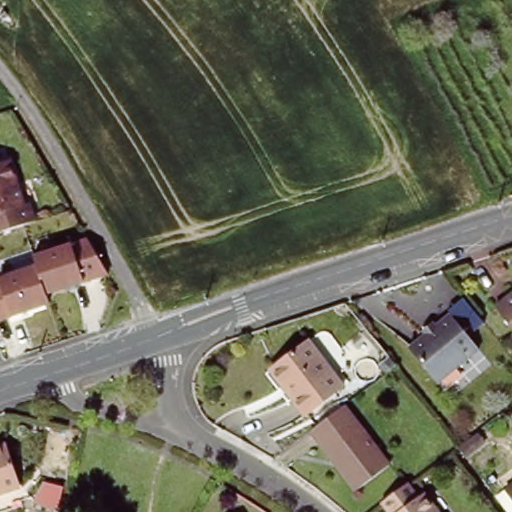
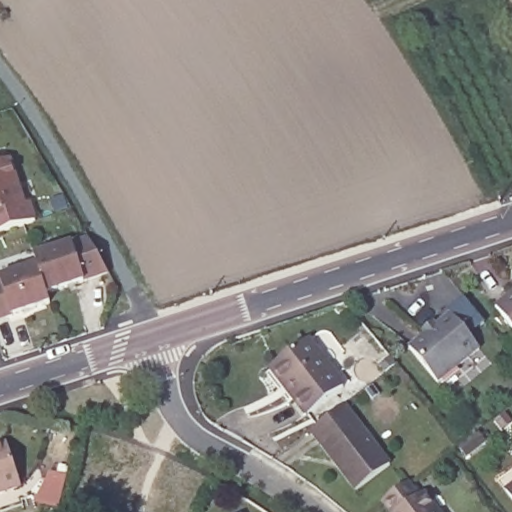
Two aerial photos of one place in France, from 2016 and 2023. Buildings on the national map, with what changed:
unchanged [(16,185),(0,192),(0,160),(6,158),(16,185)]
unchanged [(22,202),(27,201),(33,219),(0,230),(0,192),(16,185),(22,202)]
unchanged [(0,278),(0,274),(37,262),(33,252),(90,236),(105,274),(47,291),(50,304),(0,319),(0,281),(1,281),(0,278)]
unchanged [(495,306),(512,291),(512,326),(495,306)]
unchanged [(479,349),(438,384),(410,350),(425,337),(422,333),(432,325),(436,328),(450,315),(479,349)]
unchanged [(275,365),(309,339),(345,385),(308,414),(295,398),(271,368),(275,365)]
unchanged [(360,486),(314,429),(347,403),(393,461),(360,486)]
unchanged [(22,481),(19,487),(0,493),(0,447),(8,444),(22,481)]
unchanged [(380,500),(405,480),(415,493),(421,489),(439,512),(390,512),(380,500)]
unchanged [(512,488),(512,491),(510,489),(512,488)]

